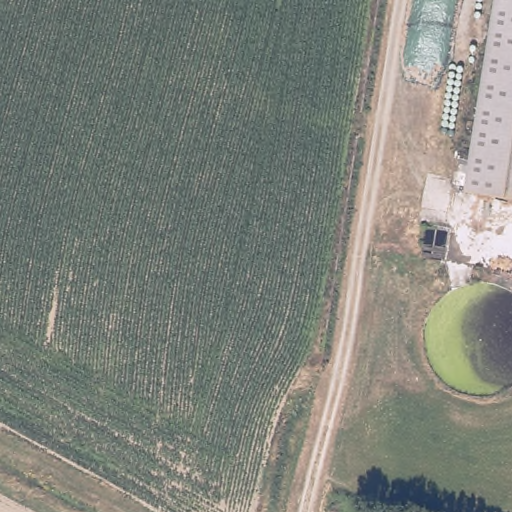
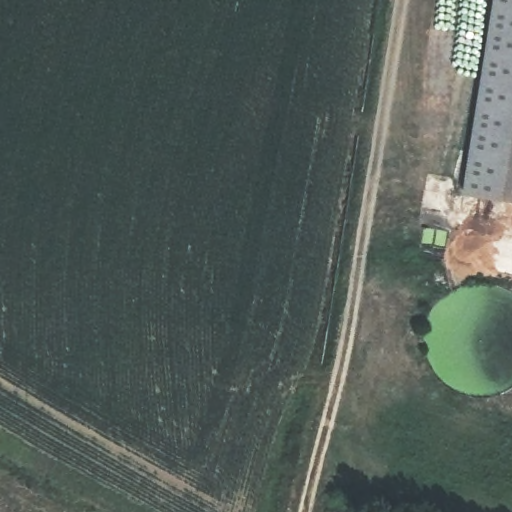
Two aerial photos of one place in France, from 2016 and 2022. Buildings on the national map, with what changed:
unchanged [(497,0),(512,0),(512,196),(459,187),(497,0)]

